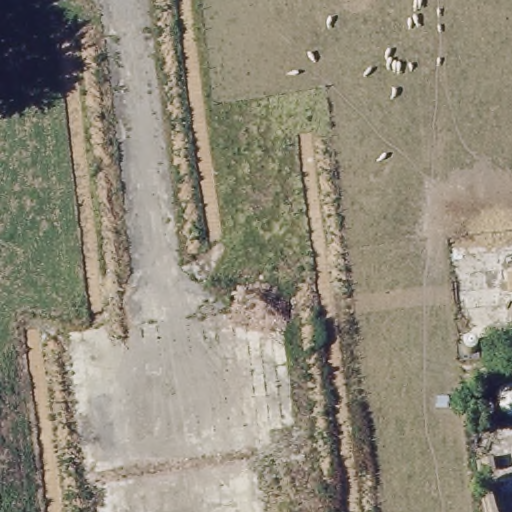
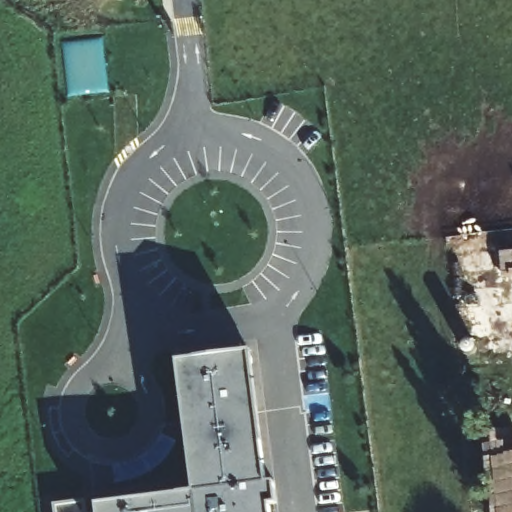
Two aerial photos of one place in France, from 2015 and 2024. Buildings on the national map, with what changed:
new [(195,493),(177,361),(249,352),(267,481),(275,481),(277,503),(270,505),(271,512),(107,512),(106,503),(195,493)]
new [(86,500),(87,512),(55,512),(53,503),(86,500)]

